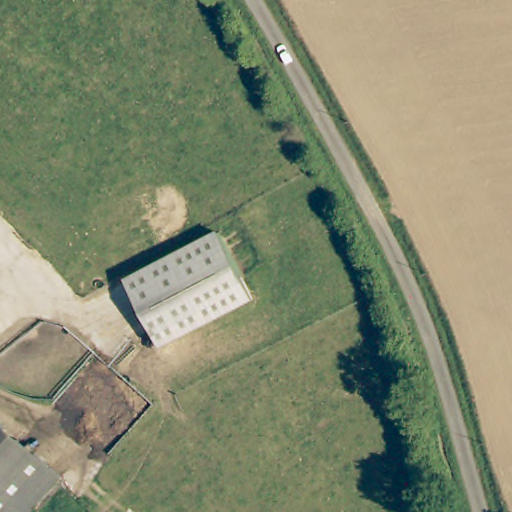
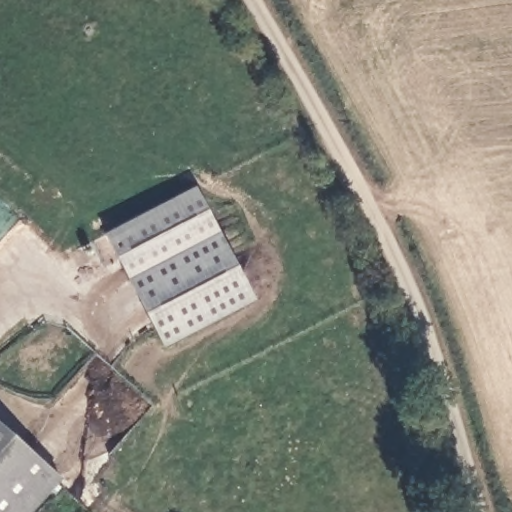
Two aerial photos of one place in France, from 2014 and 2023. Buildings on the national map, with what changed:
new [(127,278),(104,234),(195,186),(218,232),(127,278)]
unchanged [(218,232),(254,300),(163,347),(127,278),(218,232)]
unchanged [(34,512),(0,512),(0,422),(63,478),(34,512)]

